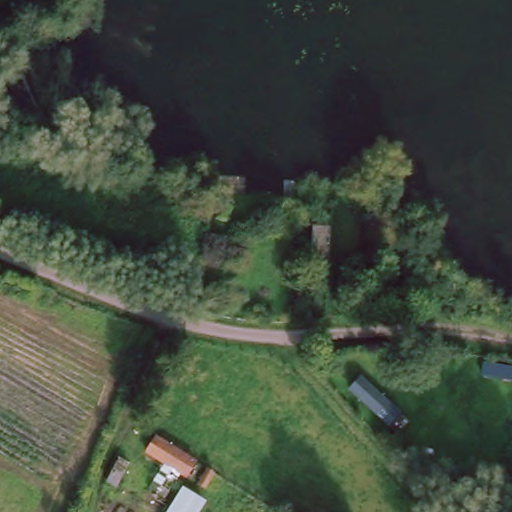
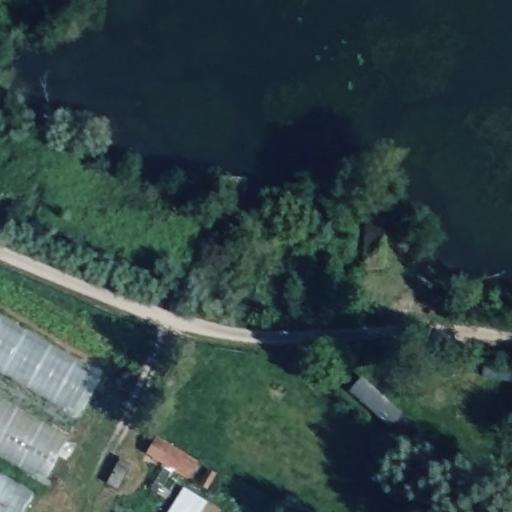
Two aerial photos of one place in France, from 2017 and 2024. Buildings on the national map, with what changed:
unchanged [(378,223),(373,274),(356,272),(361,221),(378,223)]
new [(0,316),(103,375),(77,418),(0,373),(0,316)]
new [(44,482),(0,457),(0,397),(69,437),(44,482)]
new [(184,479),(148,455),(156,441),(193,465),(184,479)]
new [(207,502),(201,512),(168,512),(183,487),(207,502)]

